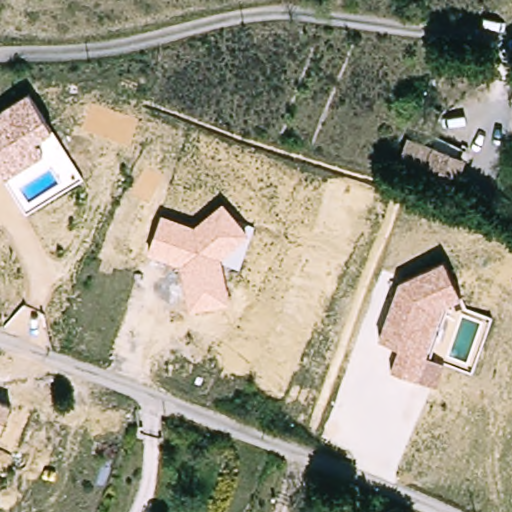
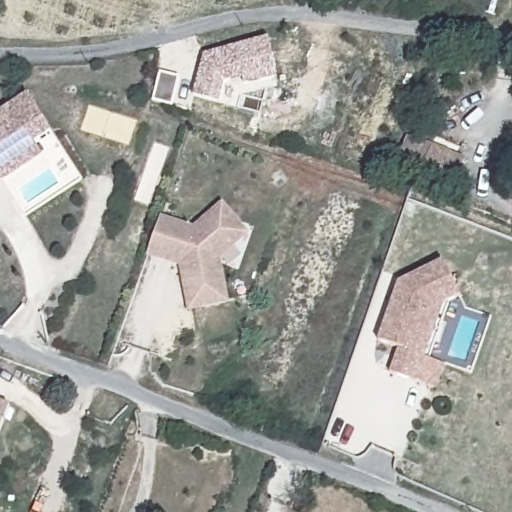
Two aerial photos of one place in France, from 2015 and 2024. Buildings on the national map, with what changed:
new [(205,56),(269,40),(276,79),(246,85),(244,78),(225,83),(219,103),(195,96),(205,56)]
unchanged [(36,144),(43,156),(5,181),(0,175),(0,113),(28,96),(52,133),(36,144)]
unchanged [(445,180),(401,169),(406,142),(453,151),(445,180)]
unchanged [(249,234),(220,257),(231,304),(190,313),(180,267),(148,255),(161,216),(195,228),(222,205),(249,234)]
unchanged [(461,299),(443,311),(427,359),(446,366),(437,390),(390,372),(399,350),(378,341),(398,283),(443,262),(461,299)]
unchanged [(0,402),(10,406),(0,434),(0,402)]

